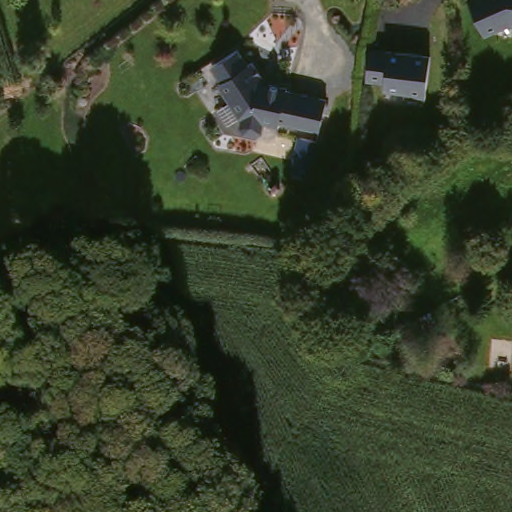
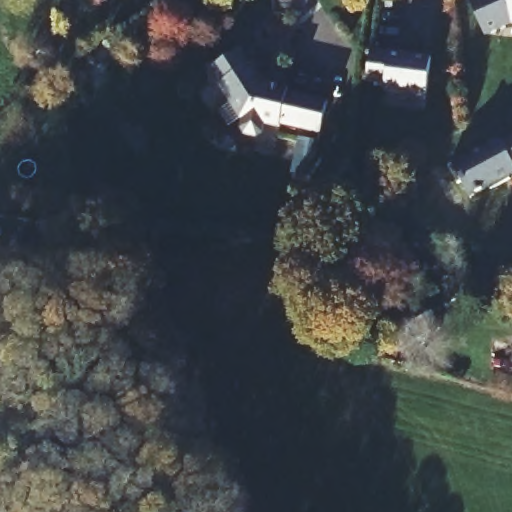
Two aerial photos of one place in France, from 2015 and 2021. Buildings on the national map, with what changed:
unchanged [(483,35),(470,0),(512,0),(512,25),(508,25),(483,35)]
unchanged [(428,57),(424,94),(419,98),(408,97),(404,92),(382,89),(383,83),(364,81),(368,50),(428,57)]
unchanged [(241,60),(252,74),(256,71),(269,87),(265,90),(268,94),(275,95),(275,91),(294,93),(294,96),(335,101),(331,133),(290,129),(290,131),(274,130),(273,140),(268,144),(256,142),(252,137),(253,127),(251,127),(225,96),(228,93),(217,79),(241,60)]
new [(502,145),(512,140),(512,176),(506,179),(507,182),(487,191),(486,187),(465,196),(458,181),(455,182),(447,164),(500,141),(502,145)]
unchanged [(429,313),(436,326),(419,335),(412,322),(429,313)]

